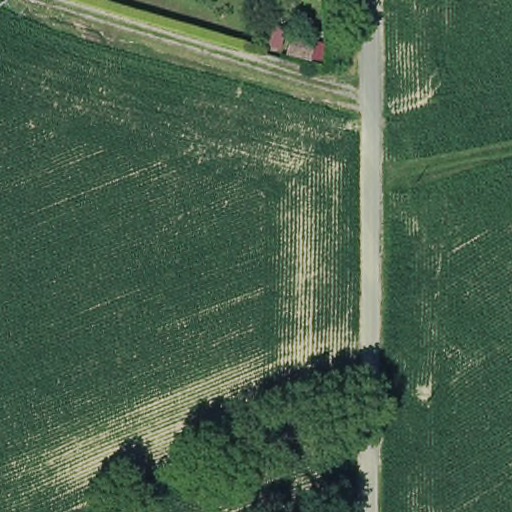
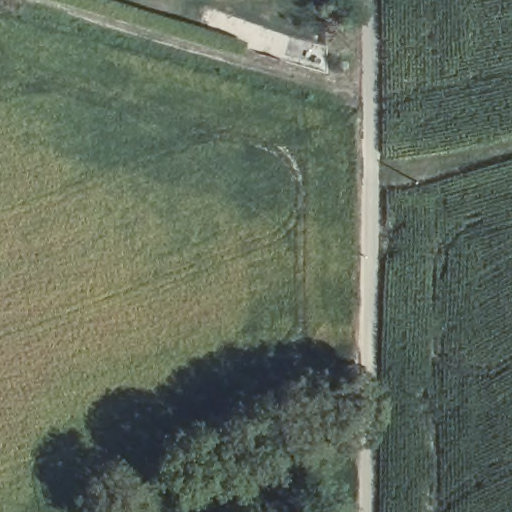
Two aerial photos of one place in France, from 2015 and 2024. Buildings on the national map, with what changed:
unchanged [(319,61),(309,60),(286,54),(291,39),(312,44),(322,46),(319,61)]

